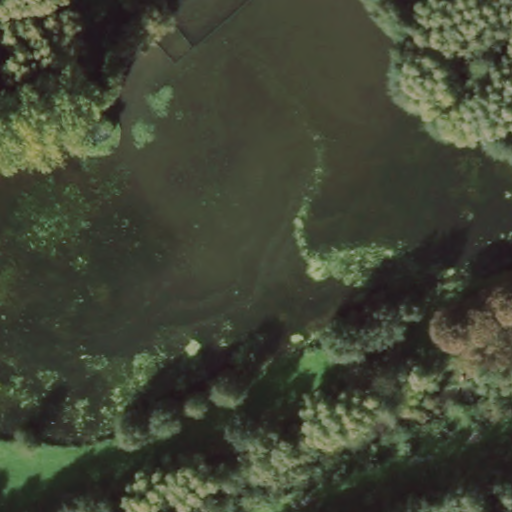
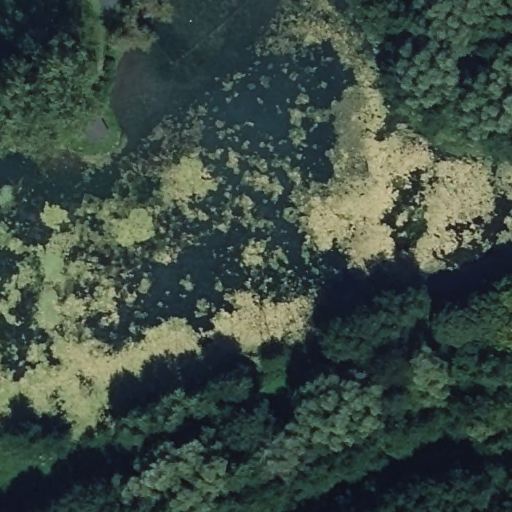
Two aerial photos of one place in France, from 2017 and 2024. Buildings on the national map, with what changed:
unchanged [(92,124),(78,124),(77,104),(95,103),(92,124)]

